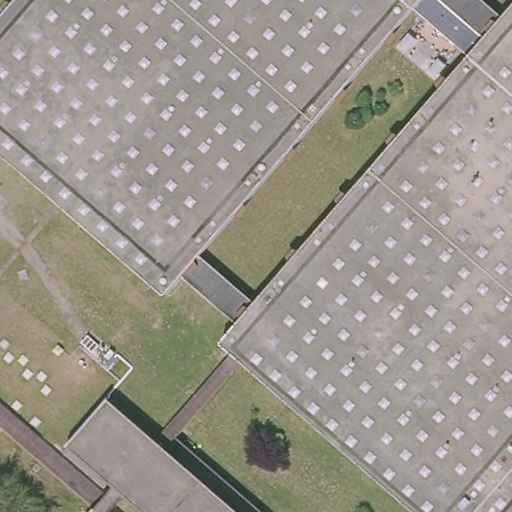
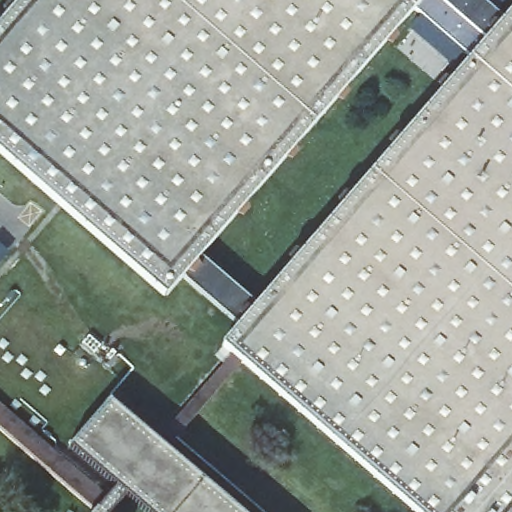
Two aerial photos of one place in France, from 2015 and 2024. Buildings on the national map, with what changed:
unchanged [(240,364),(175,439),(259,512),(144,512),(123,494),(109,512),(92,512),(94,509),(0,428),(0,406),(103,495),(112,486),(65,447),(106,399),(155,441),(229,353),(217,345),(235,326),(180,277),(163,296),(0,153),(0,23),(20,0),(476,0),(501,20),(512,8),(512,512),(411,512),(240,364)]

